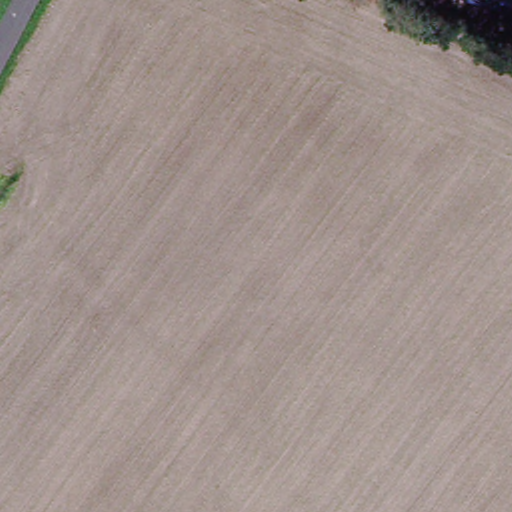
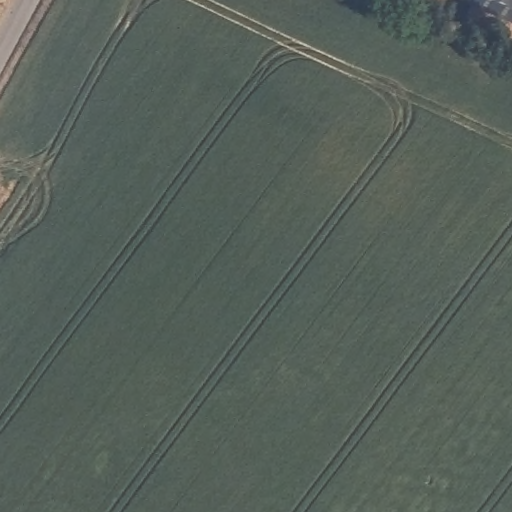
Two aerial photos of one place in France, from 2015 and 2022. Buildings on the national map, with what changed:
unchanged [(512,21),(467,0),(512,0),(512,21)]
unchanged [(512,24),(512,40),(505,36),(512,24)]

